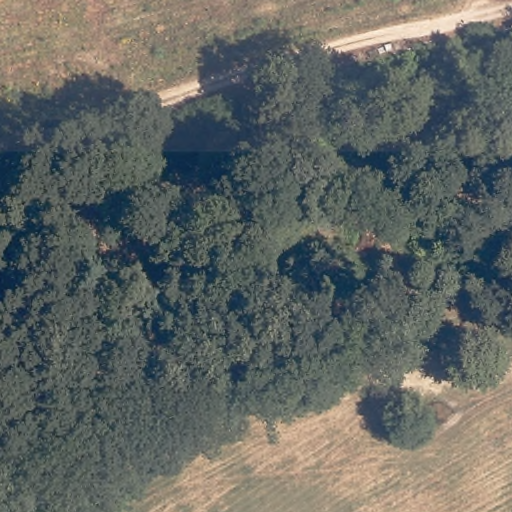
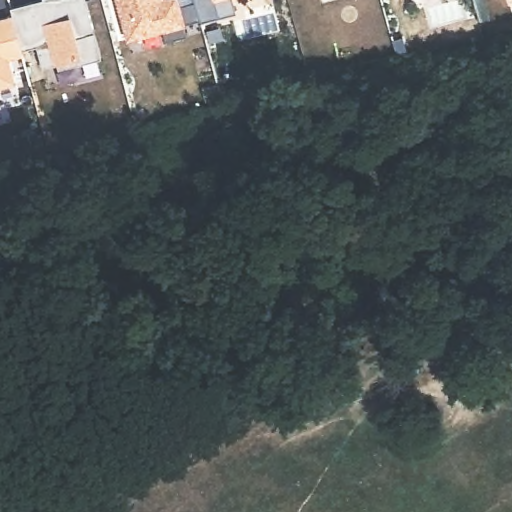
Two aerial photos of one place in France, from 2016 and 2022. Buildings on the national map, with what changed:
new [(54,67),(39,72),(33,50),(19,54),(10,20),(7,12),(29,6),(40,2),(40,1),(43,0),(82,0),(98,62),(75,68),(56,73),(54,67)]
new [(161,7),(173,4),(172,0),(191,0),(198,23),(181,28),(184,40),(164,45),(161,34),(127,42),(115,0),(159,0),(161,7)]
new [(234,16),(199,26),(198,23),(191,0),(229,0),(234,16)]
new [(10,20),(19,54),(20,59),(6,62),(13,87),(0,91),(0,22),(10,20)]

